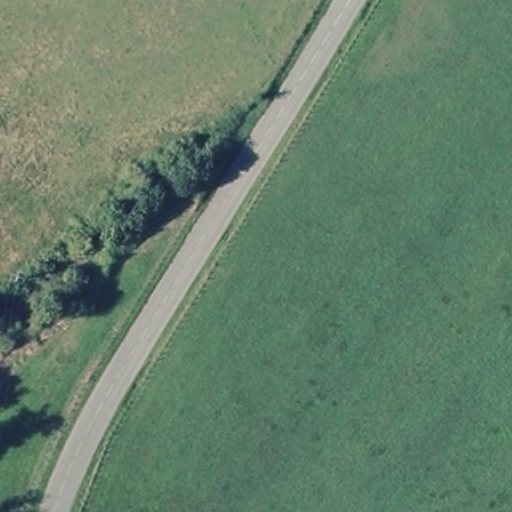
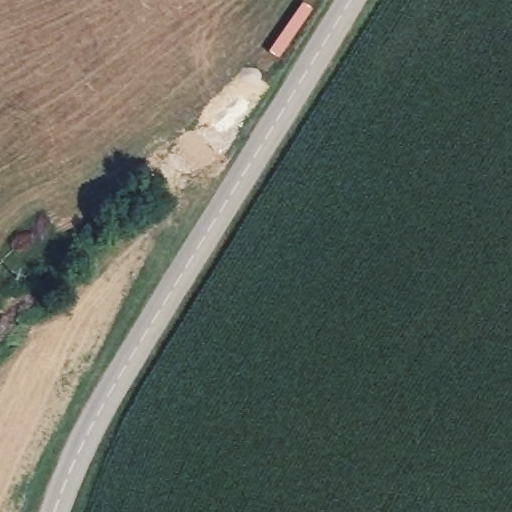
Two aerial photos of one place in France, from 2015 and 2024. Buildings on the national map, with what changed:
[]

